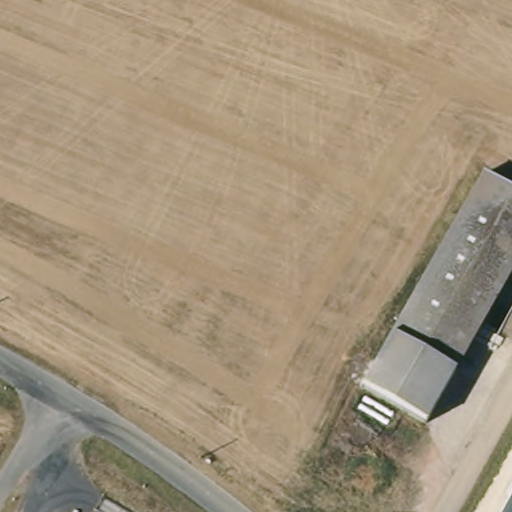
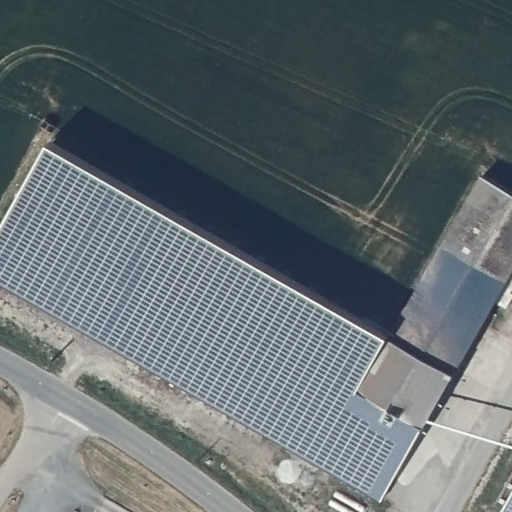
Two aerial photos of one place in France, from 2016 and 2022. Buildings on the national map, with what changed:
new [(427,417),(381,499),(0,281),(0,228),(52,138),(391,334),(364,380),(427,417)]
unchanged [(512,267),(427,417),(364,380),(480,181),(512,200),(512,267)]
unchanged [(512,497),(512,512),(504,512),(512,497)]

